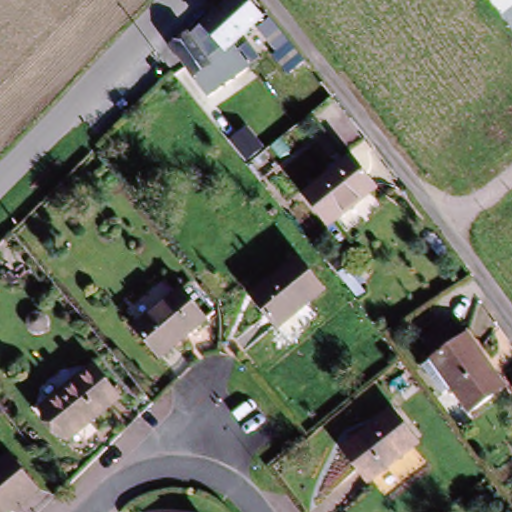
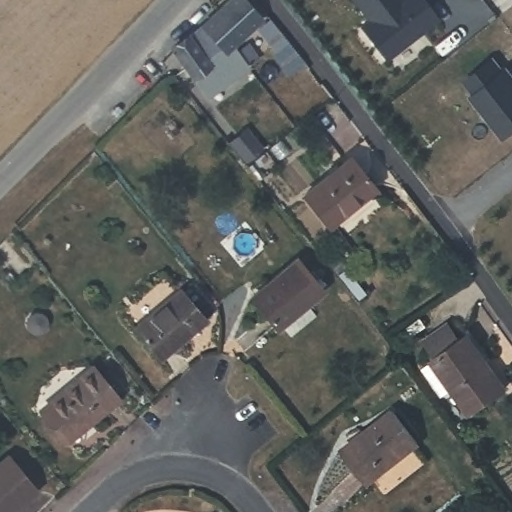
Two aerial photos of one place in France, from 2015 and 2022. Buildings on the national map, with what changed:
unchanged [(243,0),(262,20),(231,45),(223,52),(202,26),(231,0),(243,0)]
new [(399,3),(397,0),(398,0),(421,0),(437,21),(390,59),(365,26),(372,21),(355,0),(387,0),(393,8),(399,3)]
unchanged [(308,63),(294,75),(276,54),(280,51),(261,29),(271,19),(272,19),(308,63)]
unchanged [(182,41),(202,26),(223,52),(231,45),(245,65),(217,85),(182,41)]
unchanged [(182,41),(217,85),(199,99),(165,54),(182,41)]
new [(505,73),(508,70),(512,75),(512,134),(506,139),(473,98),(477,95),(467,81),(494,59),(505,73)]
unchanged [(330,229),(301,194),(346,159),(374,191),(330,229)]
unchanged [(324,291),(270,335),(244,304),(298,259),(324,291)]
unchanged [(196,315),(149,354),(126,327),(172,288),(196,315)]
unchanged [(440,371),(430,358),(464,332),(512,392),(512,397),(480,422),(461,397),(453,404),(432,377),(440,371)]
unchanged [(119,400),(71,439),(44,407),(92,369),(119,400)]
unchanged [(415,449),(367,484),(347,456),(394,422),(415,449)]
unchanged [(4,512),(0,512),(0,464),(8,457),(34,488),(4,512)]

